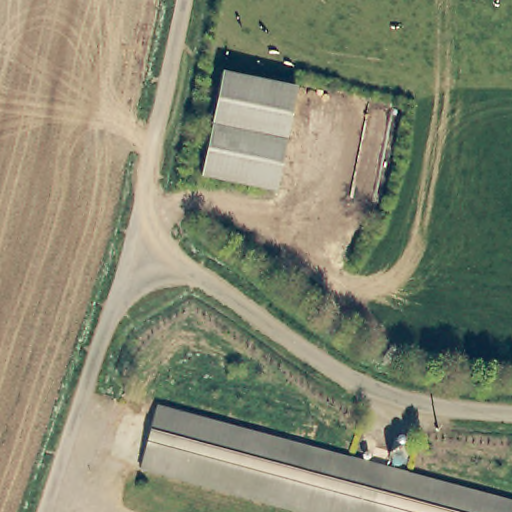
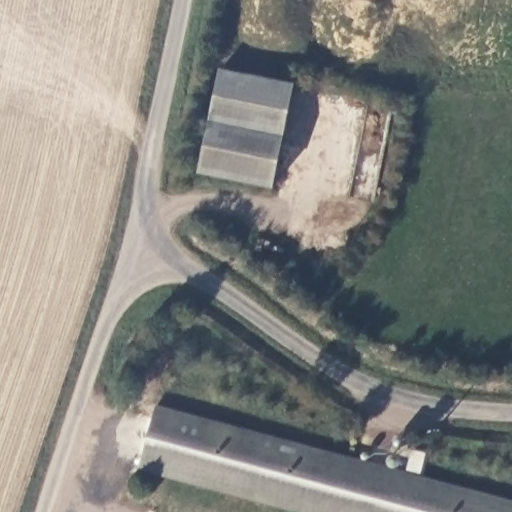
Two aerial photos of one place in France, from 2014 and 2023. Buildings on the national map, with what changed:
unchanged [(291,84),(271,184),(199,169),(219,70),(291,84)]
unchanged [(155,406),(512,502),(512,512),(310,512),(140,467),(155,406)]

